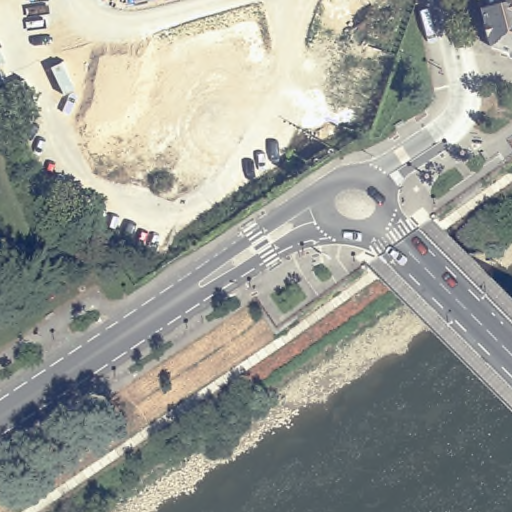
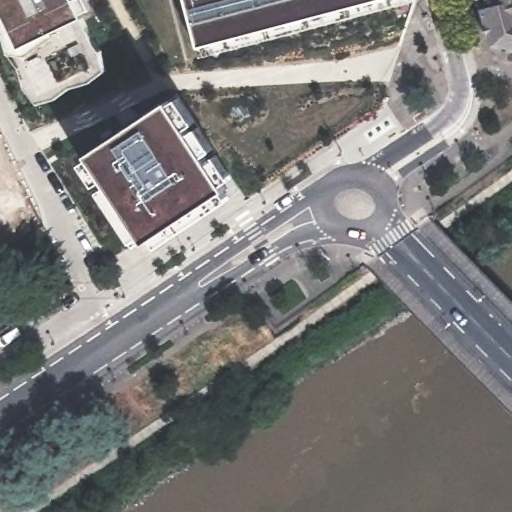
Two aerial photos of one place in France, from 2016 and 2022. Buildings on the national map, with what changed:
new [(77,23),(99,68),(44,96),(0,9),(0,0),(76,0),(85,19),(77,23)]
new [(186,0),(379,0),(199,46),(186,0)]
unchanged [(495,47),(483,0),(512,0),(512,53),(495,47)]
new [(172,101),(231,188),(151,243),(91,155),(172,101)]

